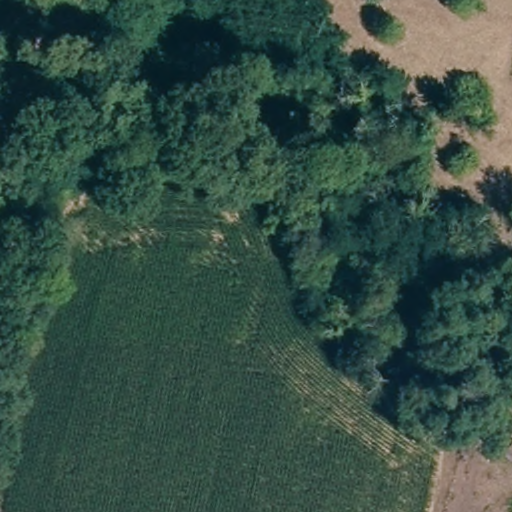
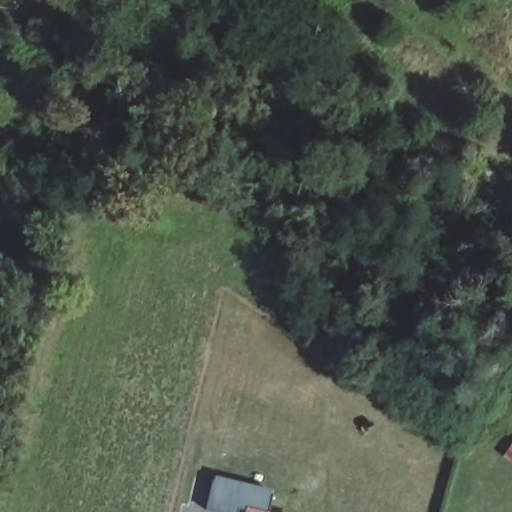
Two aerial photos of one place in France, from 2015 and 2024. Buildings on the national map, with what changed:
new [(270,512),(223,512),(209,509),(216,474),(275,488),(270,512)]

